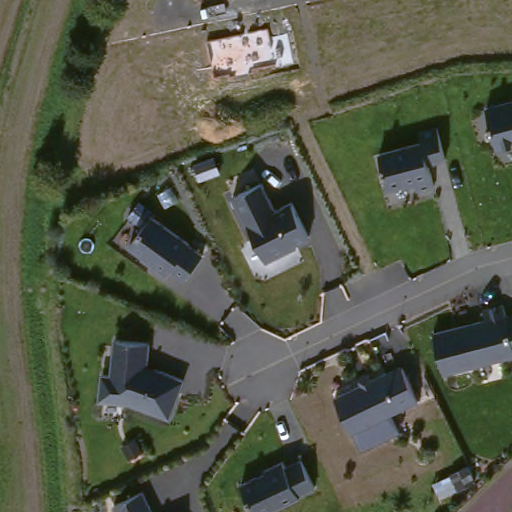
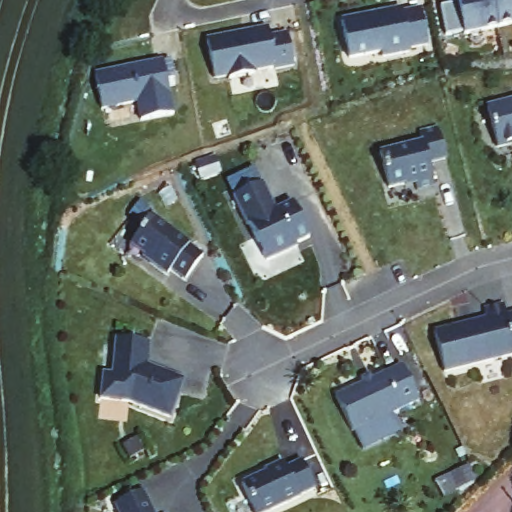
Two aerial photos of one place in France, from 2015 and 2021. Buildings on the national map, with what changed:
new [(458,3),(458,0),(512,0),(512,24),(463,34),(462,30),(445,34),(439,6),(458,3)]
new [(404,4),(404,8),(423,4),(430,38),(412,42),(413,46),(385,52),(384,47),(351,54),(343,17),(404,4)]
unchanged [(269,23),(271,32),(289,28),(296,59),(277,64),(276,61),(255,66),(256,69),(231,74),(231,71),(216,74),(208,37),(269,23)]
new [(173,56),(177,74),(169,76),(176,110),(144,117),(140,98),(104,106),(98,72),(173,56)]
unchanged [(512,100),(512,142),(498,145),(488,106),(512,100)]
unchanged [(417,149),(414,139),(433,134),(440,166),(423,170),(429,193),(411,197),(409,189),(383,195),(374,159),(417,149)]
unchanged [(262,182),(275,209),(293,200),(309,235),(296,243),(298,245),(266,260),(248,224),(247,225),(233,196),(262,182)]
unchanged [(152,220),(191,248),(190,249),(205,259),(187,284),(173,274),(169,279),(151,267),(153,265),(131,250),(152,220)]
unchanged [(433,338),(486,325),(484,315),(504,310),(507,322),(512,320),(512,361),(443,378),(433,338)]
unchanged [(173,415),(95,399),(98,370),(110,371),(111,335),(145,339),(145,366),(180,377),(173,415)]
unchanged [(388,374),(389,376),(405,368),(420,399),(353,432),(338,398),(388,374)]
unchanged [(261,477),(260,474),(279,466),(283,472),(298,464),(311,492),(295,499),(296,500),(271,512),(249,512),(238,488),(261,477)]
unchanged [(134,498),(141,512),(106,512),(106,511),(134,498)]

